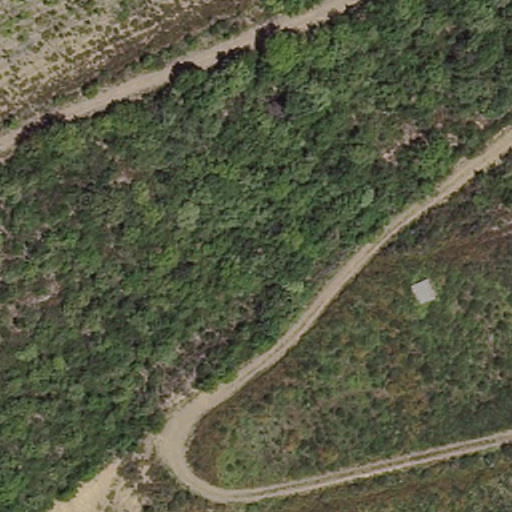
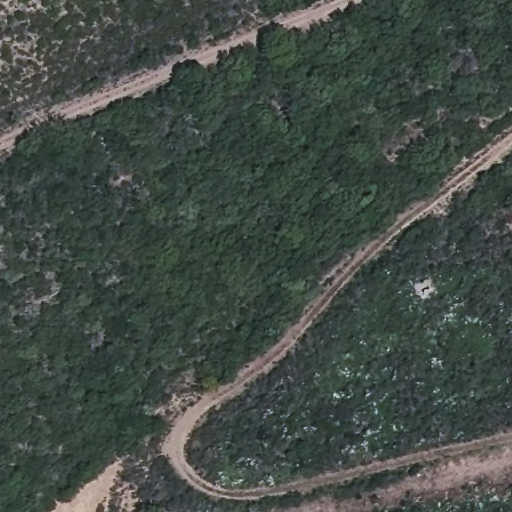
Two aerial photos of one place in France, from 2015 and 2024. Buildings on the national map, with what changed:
unchanged [(409,290),(431,280),(440,299),(417,308),(409,290)]

